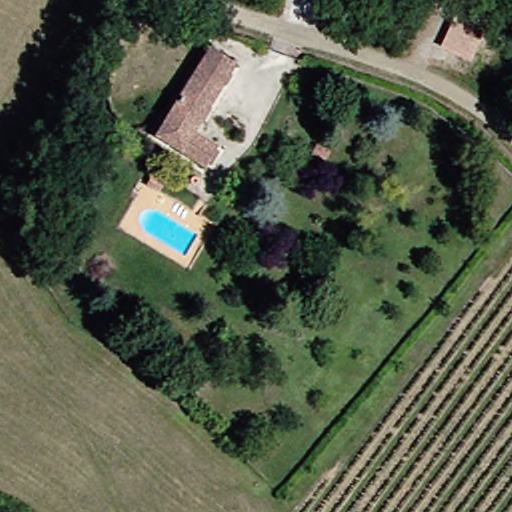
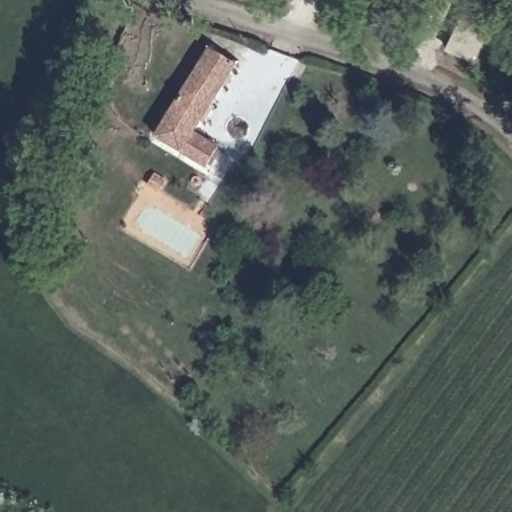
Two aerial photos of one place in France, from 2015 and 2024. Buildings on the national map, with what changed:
unchanged [(483,67),(453,55),(465,24),(495,37),(483,67)]
unchanged [(215,50),(239,64),(195,131),(215,144),(203,163),(159,133),(215,50)]
unchanged [(164,173),(158,183),(148,176),(154,166),(164,173)]

